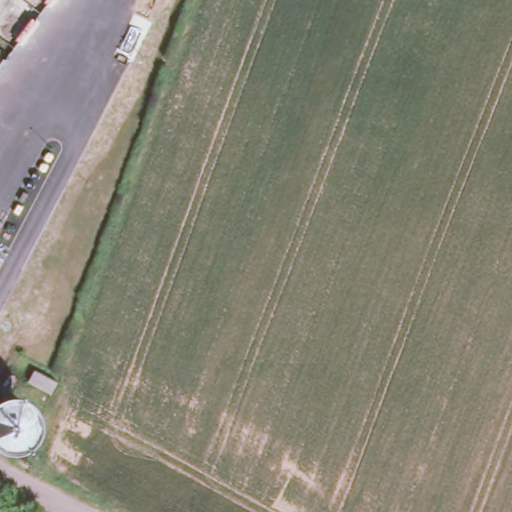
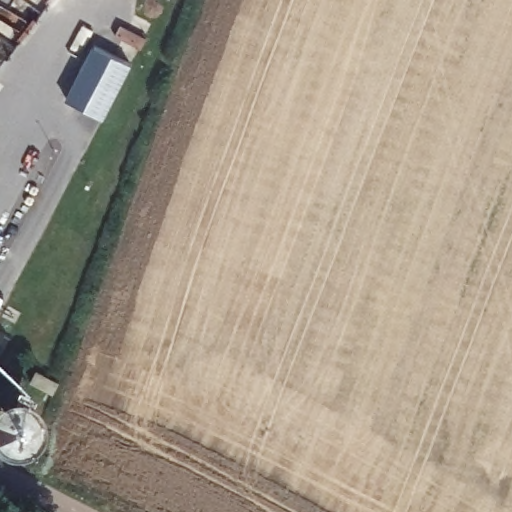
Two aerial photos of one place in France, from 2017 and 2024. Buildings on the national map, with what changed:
new [(65,97),(92,42),(128,60),(101,115),(65,97)]

